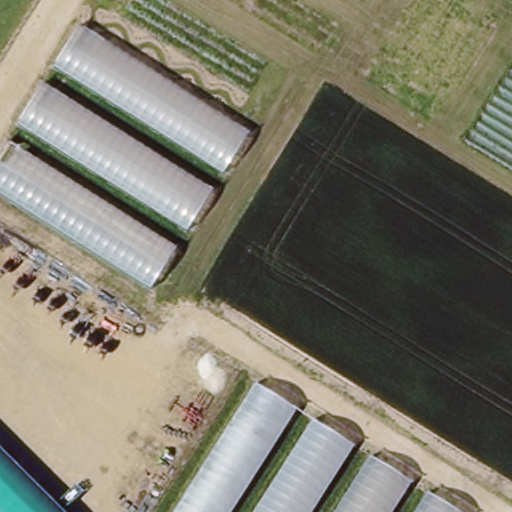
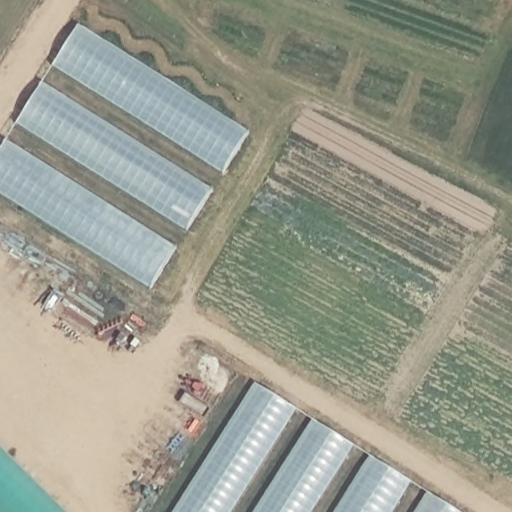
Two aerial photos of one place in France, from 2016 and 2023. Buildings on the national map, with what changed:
unchanged [(78,26),(248,133),(222,176),(52,68),(78,26)]
unchanged [(41,84),(212,190),(186,233),(16,126),(41,84)]
unchanged [(176,248),(150,292),(0,197),(0,149),(5,141),(176,248)]
unchanged [(233,512),(173,512),(254,385),(297,411),(233,512)]
unchanged [(312,512),(254,512),(312,421),(354,446),(312,512)]
unchanged [(0,512),(0,451),(61,512),(0,512)]
unchanged [(393,512),(334,512),(370,457),(411,484),(393,512)]
unchanged [(415,512),(427,494),(458,512),(415,512)]

